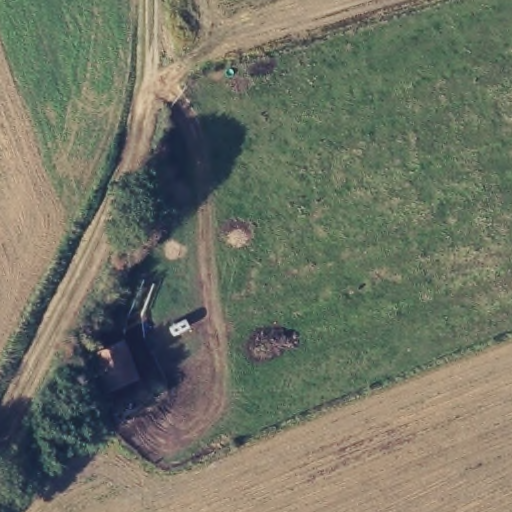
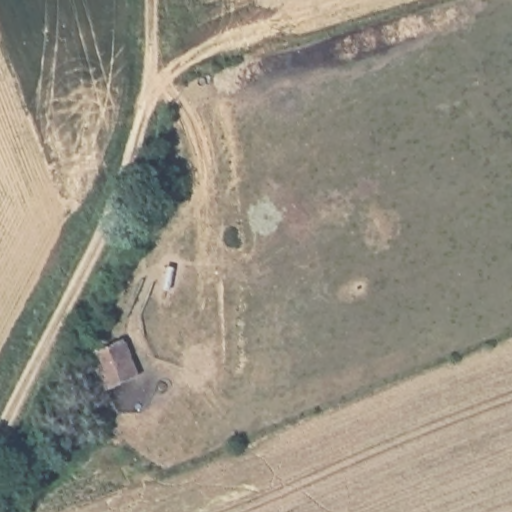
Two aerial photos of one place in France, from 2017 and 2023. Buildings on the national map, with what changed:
unchanged [(144,377),(110,391),(95,355),(130,341),(144,377)]

